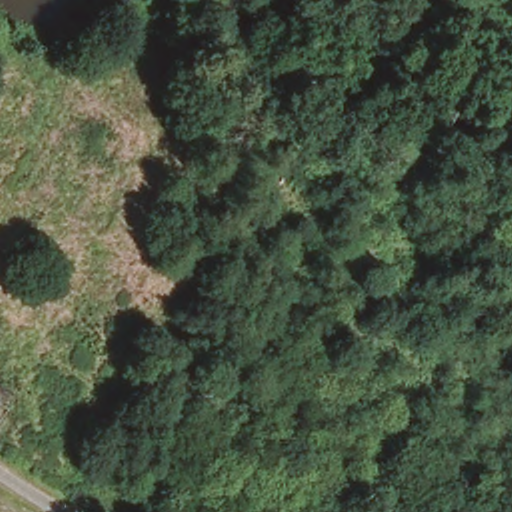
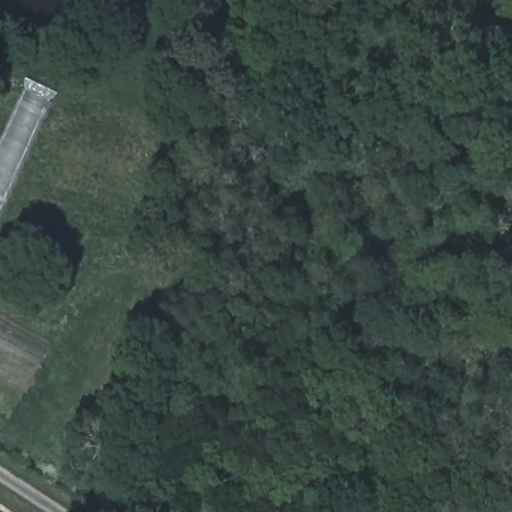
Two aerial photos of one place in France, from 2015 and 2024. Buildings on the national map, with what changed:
demolished [(50,100),(0,198),(0,114),(16,82),(50,100)]
demolished [(16,389),(0,417),(0,380),(16,389)]

